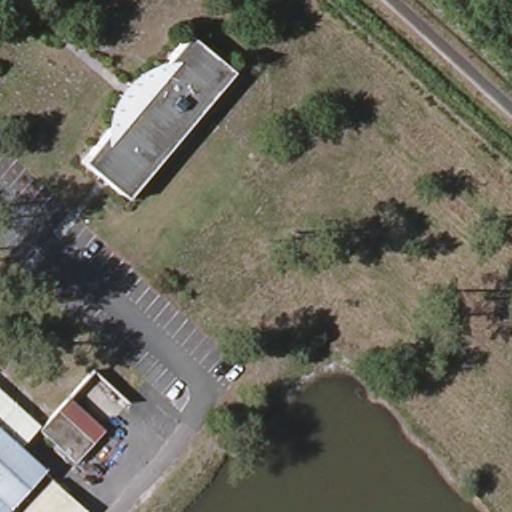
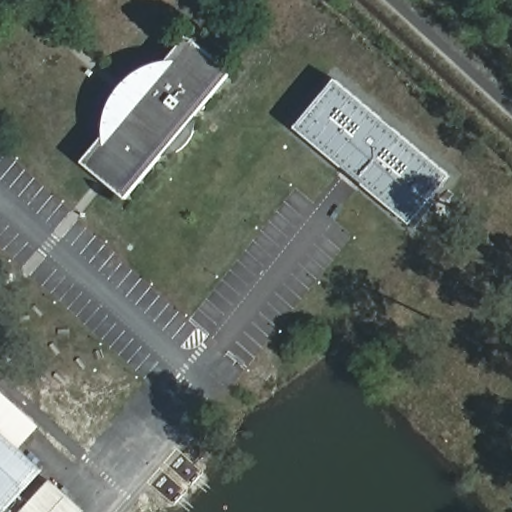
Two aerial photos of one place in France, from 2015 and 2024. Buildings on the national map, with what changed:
unchanged [(230,73),(123,197),(80,161),(184,37),(230,73)]
new [(411,224),(296,127),(336,79),(451,175),(411,224)]
unchanged [(34,427),(15,446),(82,511),(82,512),(0,512),(0,397),(34,427)]
demolished [(71,462),(39,430),(69,399),(101,432),(71,462)]

